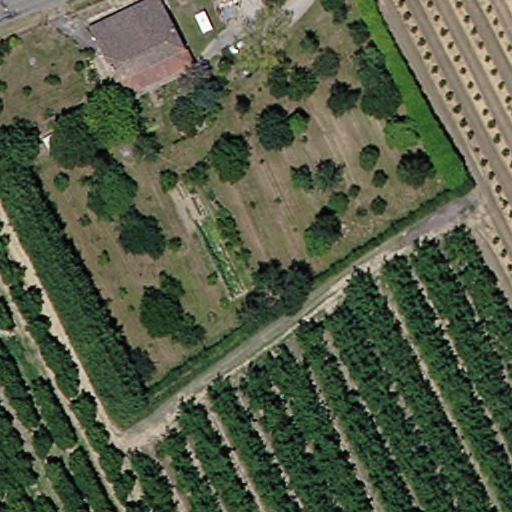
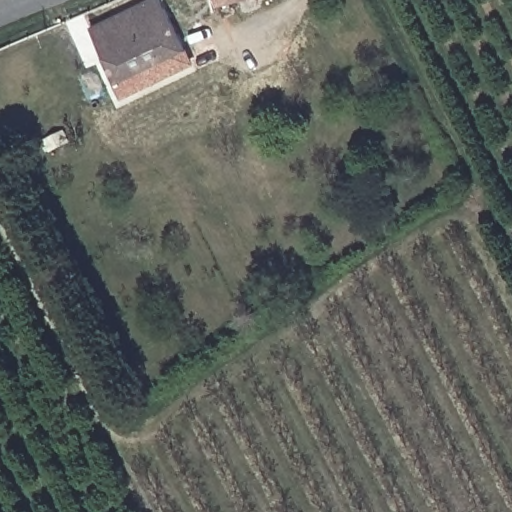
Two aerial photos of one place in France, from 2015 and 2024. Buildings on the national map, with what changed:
unchanged [(104,90),(77,30),(141,0),(151,0),(184,70),(163,80),(112,105),(104,90)]
unchanged [(216,2),(215,0),(224,0),(216,2)]

